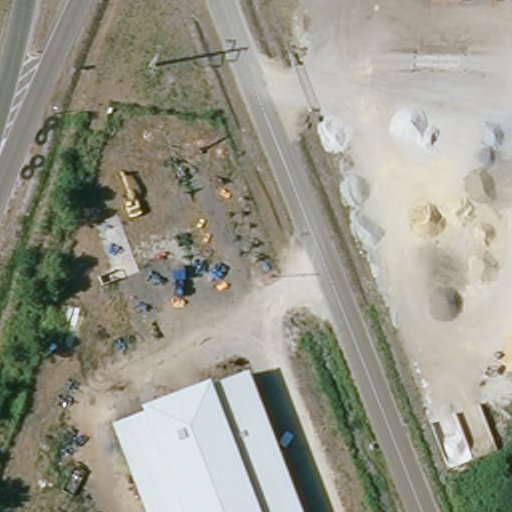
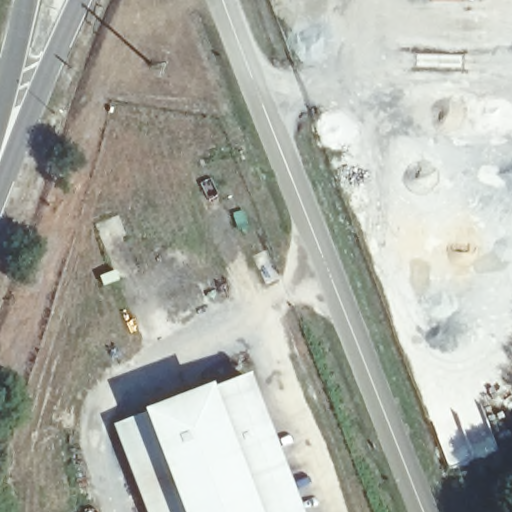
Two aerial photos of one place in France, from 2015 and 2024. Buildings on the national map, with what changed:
unchanged [(240,373),(293,512),(183,512),(160,453),(132,464),(115,422),(240,373)]
unchanged [(183,512),(150,512),(132,464),(160,453),(183,512)]

